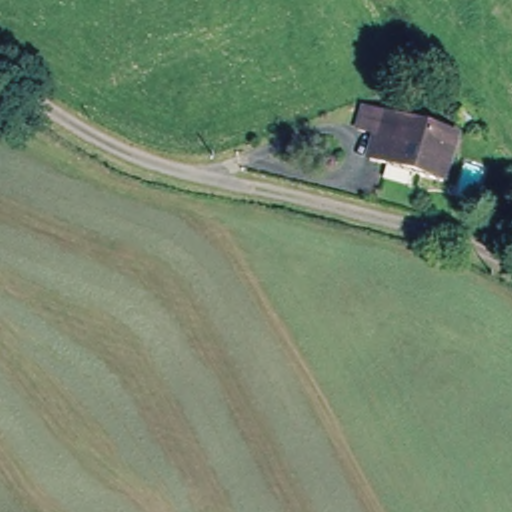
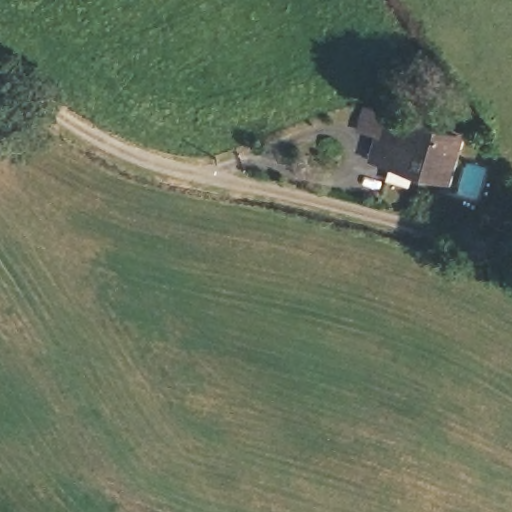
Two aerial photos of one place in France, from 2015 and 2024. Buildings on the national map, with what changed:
unchanged [(438,179),(362,157),(378,110),(453,131),(438,179)]

